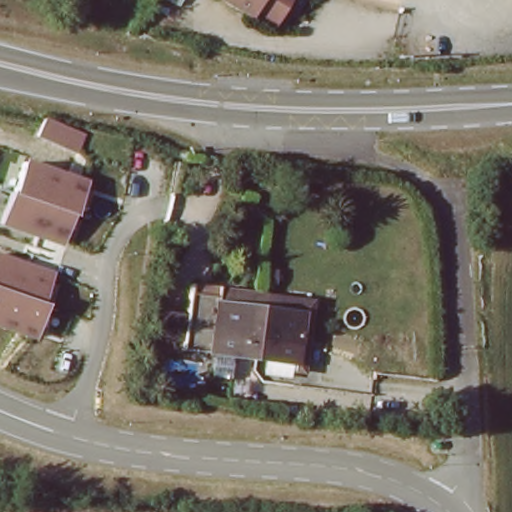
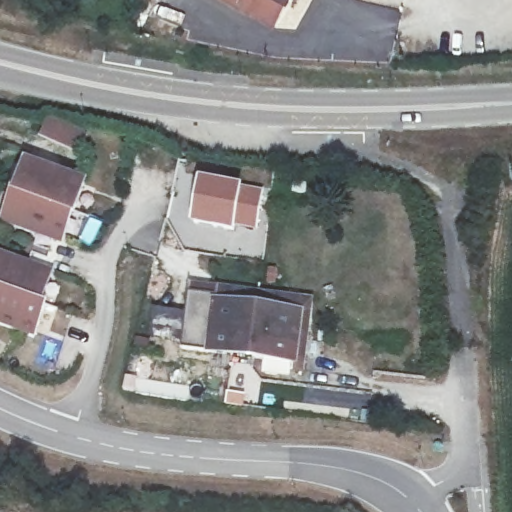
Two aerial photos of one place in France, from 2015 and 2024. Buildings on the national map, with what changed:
unchanged [(250,13),(228,0),(257,0),(250,13)]
unchanged [(271,26),(250,13),(257,0),(287,0),(271,26)]
unchanged [(88,181),(64,244),(2,224),(26,160),(88,181)]
new [(243,189),(265,193),(257,231),(236,229),(235,233),(192,225),(201,180),(243,189)]
unchanged [(55,272),(45,302),(50,303),(37,338),(0,326),(0,253),(55,272)]
unchanged [(189,285),(216,288),(215,298),(254,303),(253,315),(297,320),(291,367),(180,352),(189,285)]
unchanged [(311,300),(302,375),(290,373),(291,367),(297,320),(253,315),(254,303),(215,298),(216,288),(311,300)]

